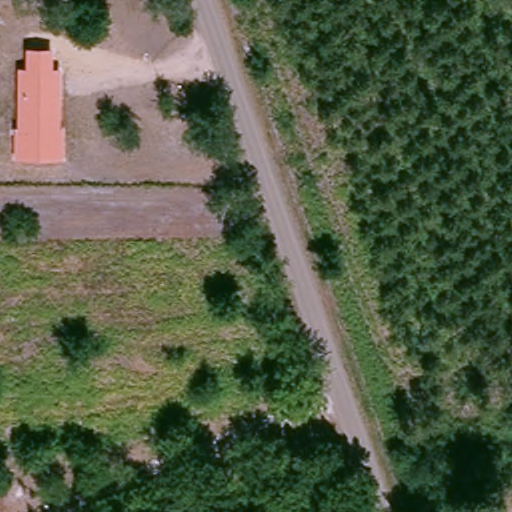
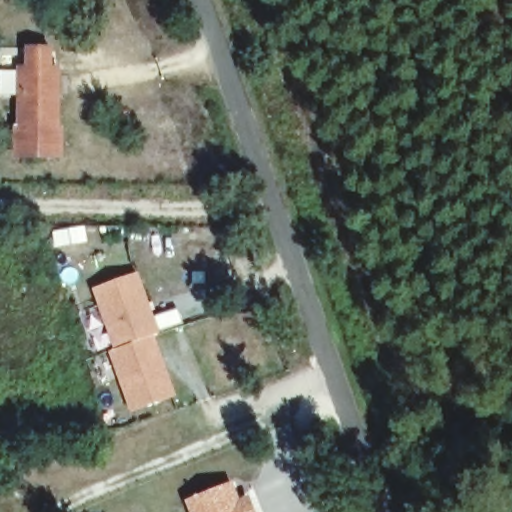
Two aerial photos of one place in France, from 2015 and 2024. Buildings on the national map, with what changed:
unchanged [(15,158),(15,126),(17,126),(18,67),(25,67),(25,47),(52,48),(52,68),(60,69),(60,126),(65,127),(65,160),(15,158)]
new [(152,335),(176,396),(130,412),(110,354),(115,351),(92,290),(137,272),(159,333),(152,335)]
new [(234,482),(240,498),(250,495),(256,512),(190,512),(186,501),(234,482)]

